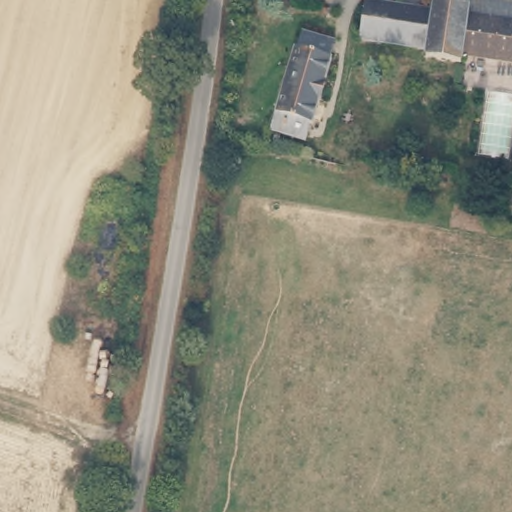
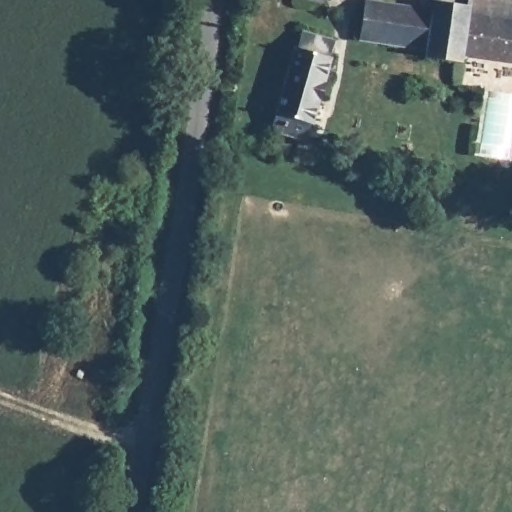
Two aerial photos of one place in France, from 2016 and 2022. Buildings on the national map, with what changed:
unchanged [(465,0),(512,6),(512,27),(463,21),(464,11),(465,0)]
unchanged [(361,6),(427,14),(429,6),(464,11),(463,21),(512,27),(512,68),(457,59),(455,69),(420,63),(422,55),(358,47),(361,6)]
unchanged [(276,109),(294,42),(298,43),(303,27),(335,34),(330,53),(333,55),(317,118),(312,117),(308,134),(284,128),(272,125),(276,109)]

